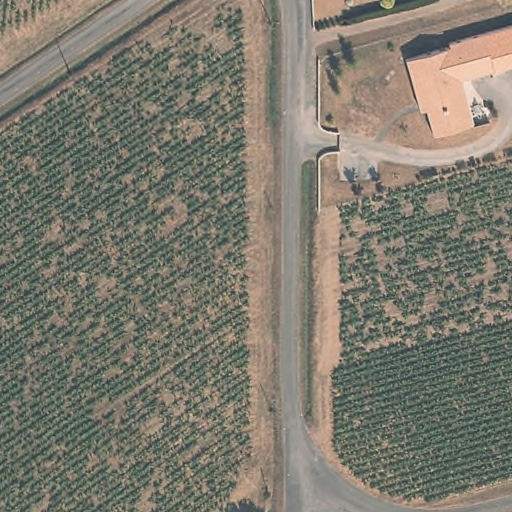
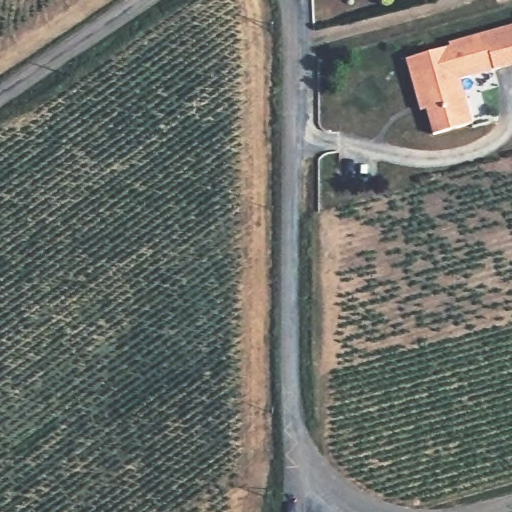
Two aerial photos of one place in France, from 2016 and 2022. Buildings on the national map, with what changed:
unchanged [(418,106),(406,64),(449,52),(448,48),(484,38),(494,74),(459,84),(472,128),(433,139),(426,114),(420,115),(418,106)]

